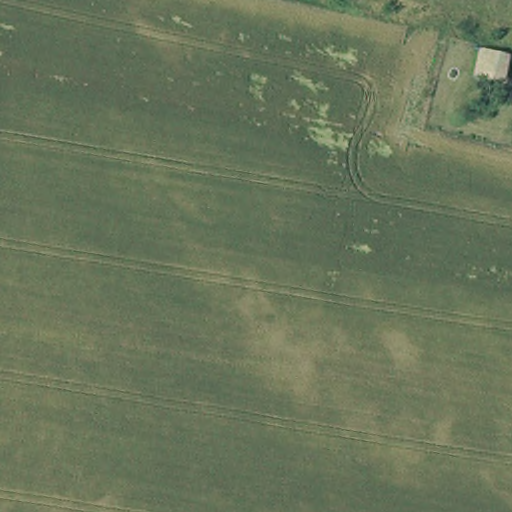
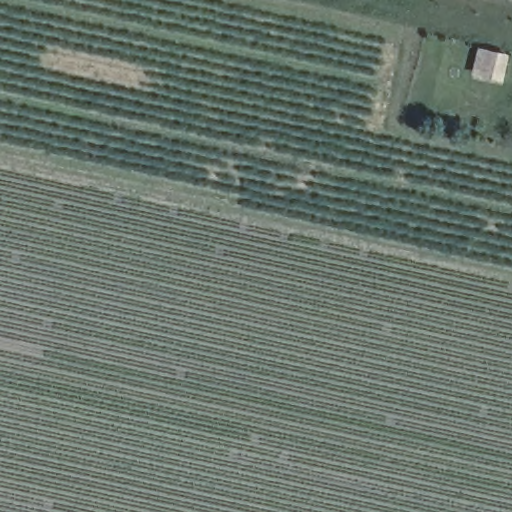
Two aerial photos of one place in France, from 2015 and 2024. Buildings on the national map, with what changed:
unchanged [(461,76),(466,49),(505,56),(500,85),(461,76)]

